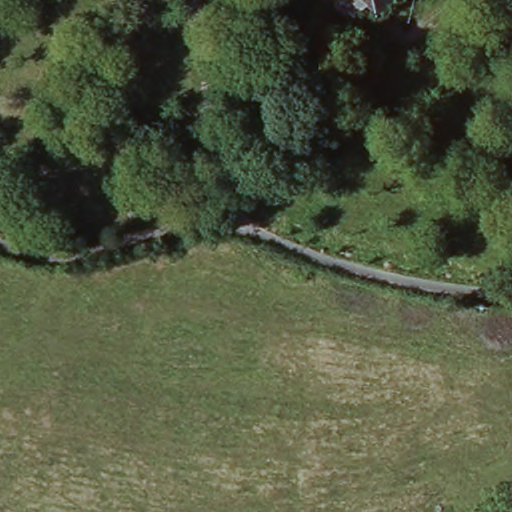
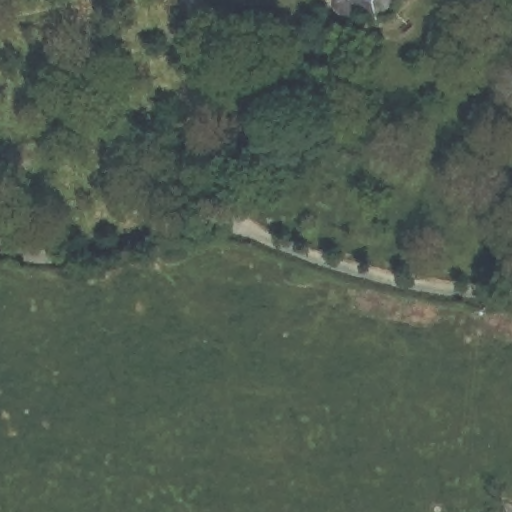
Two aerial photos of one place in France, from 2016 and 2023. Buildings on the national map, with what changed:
unchanged [(383,14),(369,1),(352,19),(332,0),(399,0),(383,14)]

